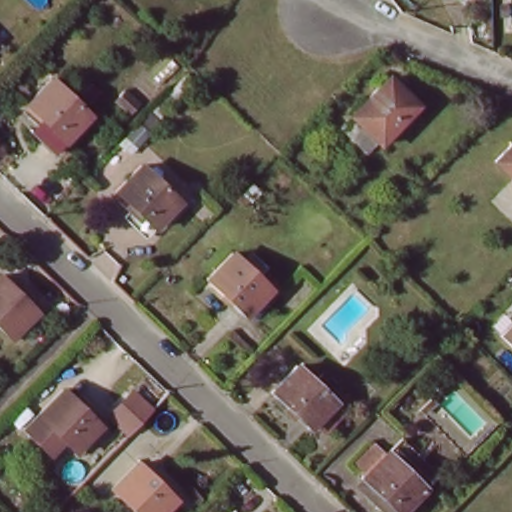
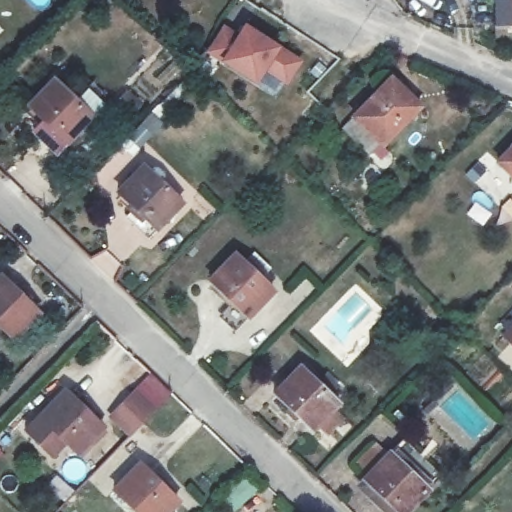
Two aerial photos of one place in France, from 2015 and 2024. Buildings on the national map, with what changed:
new [(237,34),(243,23),(280,47),(302,60),(287,85),(264,70),(256,84),(220,61),(204,51),(222,24),(237,34)]
unchanged [(343,125),(355,113),(393,74),(413,93),(422,102),(409,115),(372,154),(343,125)]
unchanged [(95,115),(60,151),(38,129),(47,119),(32,104),(57,77),(95,115)]
unchanged [(512,144),(512,177),(495,161),(512,144)]
unchanged [(180,202),(155,228),(117,192),(143,165),(180,202)]
unchanged [(275,288),(250,314),(212,278),(237,251),(275,288)]
unchanged [(43,310),(17,335),(0,319),(0,278),(5,272),(43,310)]
unchanged [(512,327),(512,345),(502,335),(512,327)]
unchanged [(338,401),(313,427),(275,389),(300,363),(338,401)]
new [(138,391),(157,409),(134,433),(115,414),(138,391)]
unchanged [(105,429),(80,455),(43,418),(68,392),(105,429)]
unchanged [(402,512),(382,512),(355,485),(380,459),(381,460),(394,446),(431,481),(402,512)]
new [(3,452),(0,456),(0,450),(3,452)]
unchanged [(167,512),(143,512),(117,487),(143,461),(180,498),(167,512)]

